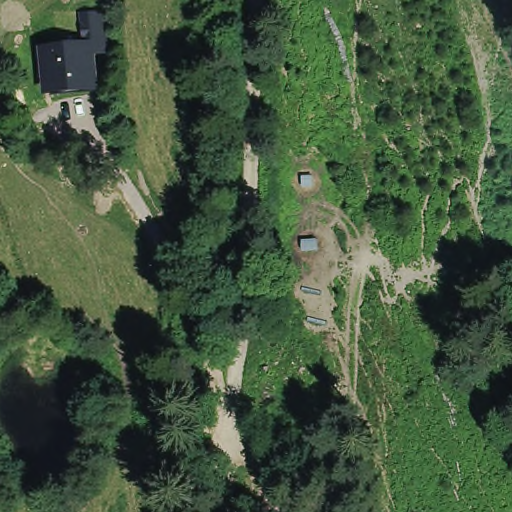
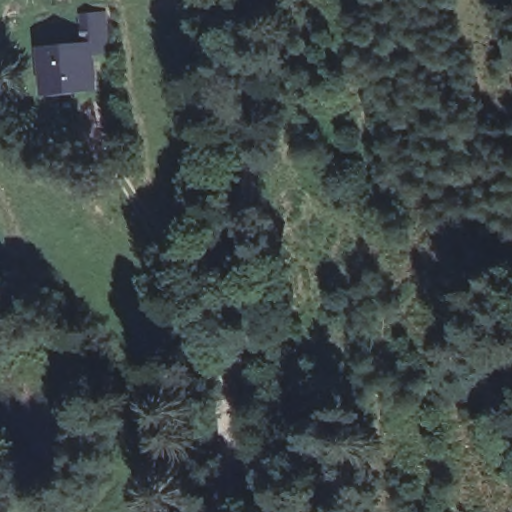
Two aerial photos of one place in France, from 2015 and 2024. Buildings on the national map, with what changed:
unchanged [(49,98),(46,64),(84,60),(83,51),(81,30),(103,28),(105,49),(105,59),(87,60),(90,95),(49,98)]

